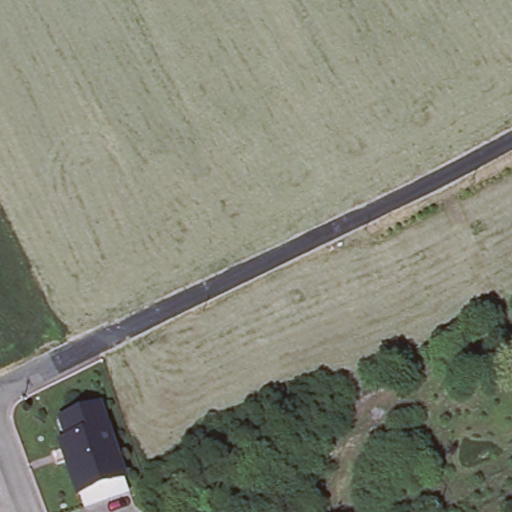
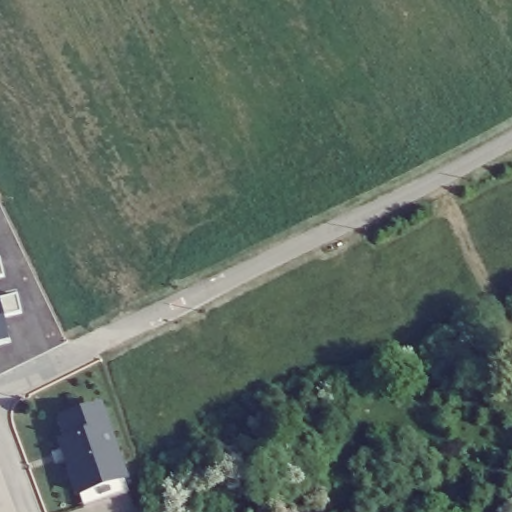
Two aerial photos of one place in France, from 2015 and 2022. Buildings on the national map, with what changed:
new [(1,298),(10,337),(0,340),(0,299),(1,298)]
unchanged [(76,497),(72,487),(55,437),(63,434),(56,415),(93,402),(117,471),(121,481),(76,497)]

